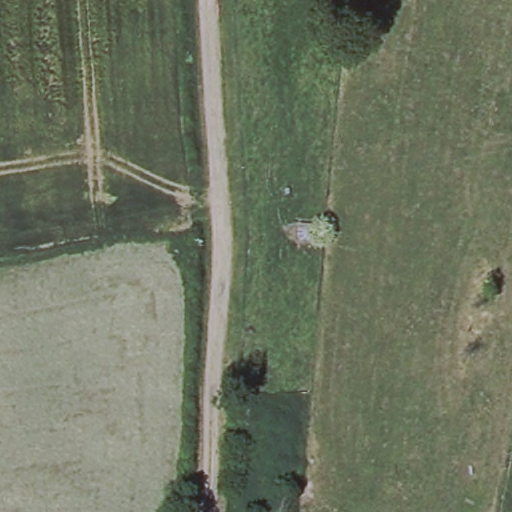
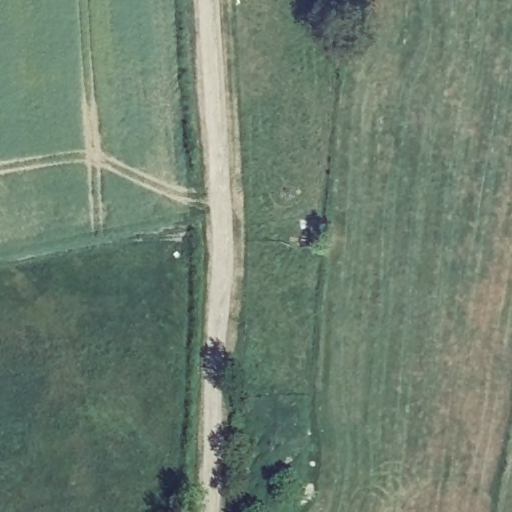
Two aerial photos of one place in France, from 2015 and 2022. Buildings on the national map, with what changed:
unchanged [(301,226),(321,225),(322,241),(301,241),(301,226)]

